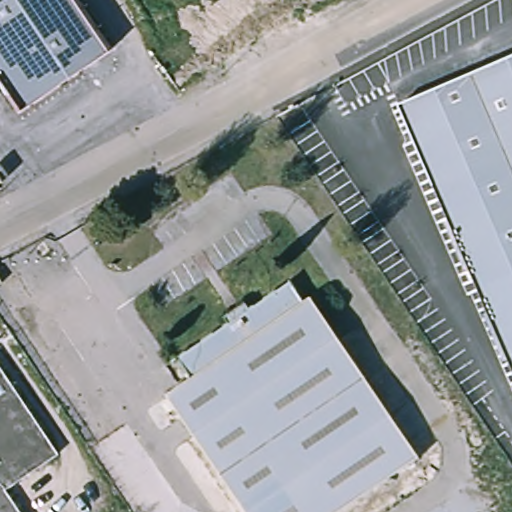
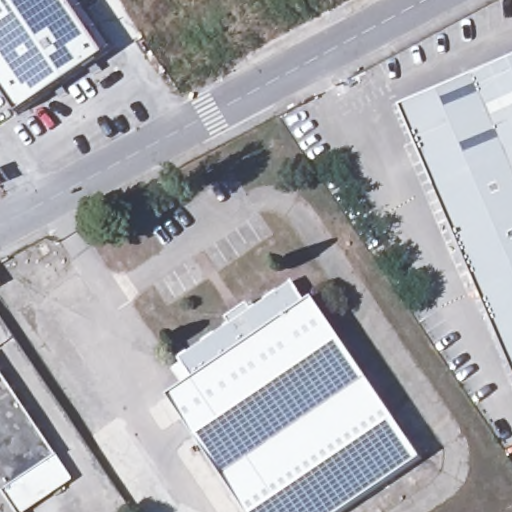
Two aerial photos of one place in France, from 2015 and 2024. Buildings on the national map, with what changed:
unchanged [(19,116),(0,87),(0,0),(70,0),(108,56),(19,116)]
unchanged [(402,106),(512,61),(512,372),(402,106)]
unchanged [(0,294),(0,273),(10,289),(0,294)]
unchanged [(191,381),(176,358),(288,283),(304,306),(315,299),(421,458),(338,512),(247,512),(169,395),(191,381)]
unchanged [(0,492),(0,377),(53,456),(0,492)]
unchanged [(0,492),(13,512),(0,512),(0,492)]

